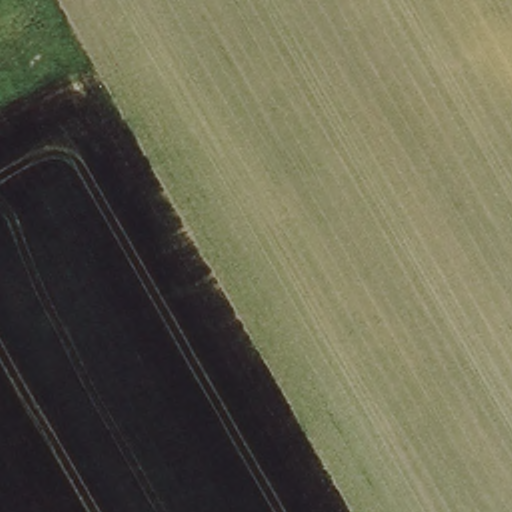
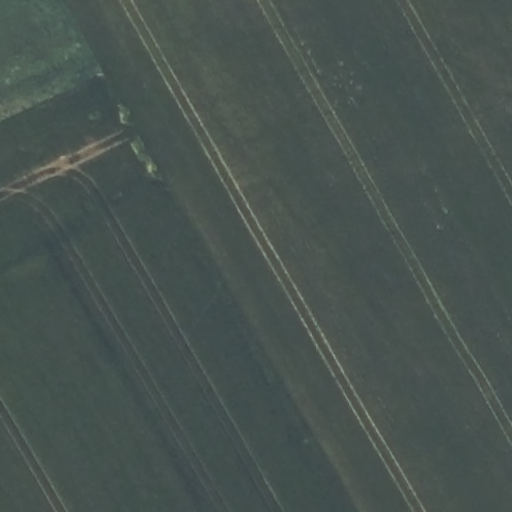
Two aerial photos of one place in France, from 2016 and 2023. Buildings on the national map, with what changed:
[]

